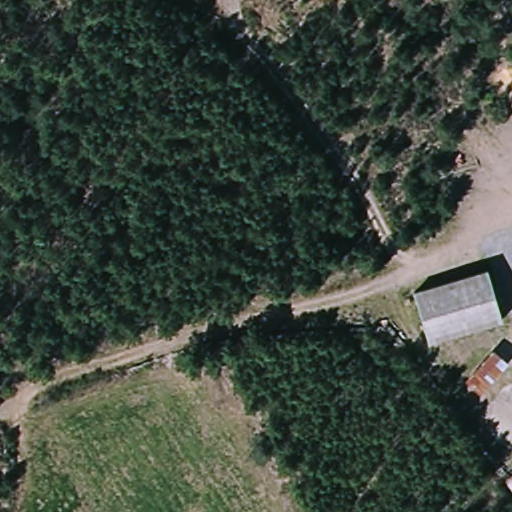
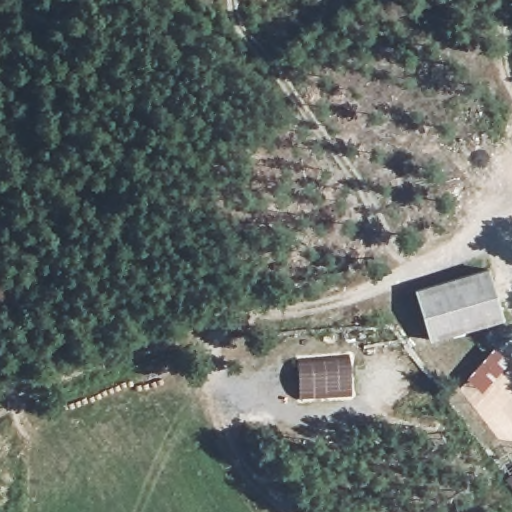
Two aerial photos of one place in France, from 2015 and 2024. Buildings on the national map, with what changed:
unchanged [(433,339),(421,292),(491,272),(504,319),(433,339)]
unchanged [(499,343),(512,353),(512,360),(483,396),(469,375),(499,343)]
new [(349,356),(351,395),(298,398),(296,361),(349,356)]
unchanged [(512,488),(504,478),(512,473),(512,488)]

